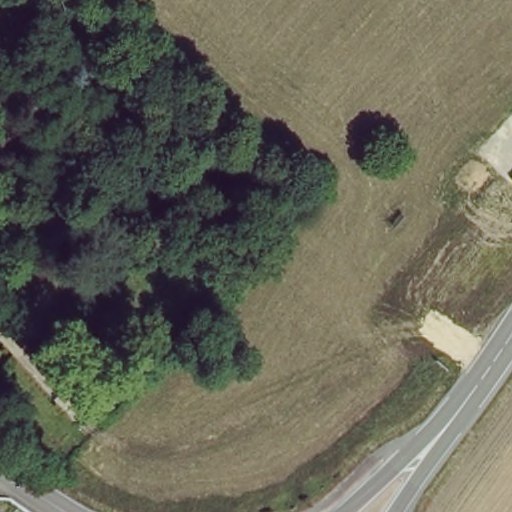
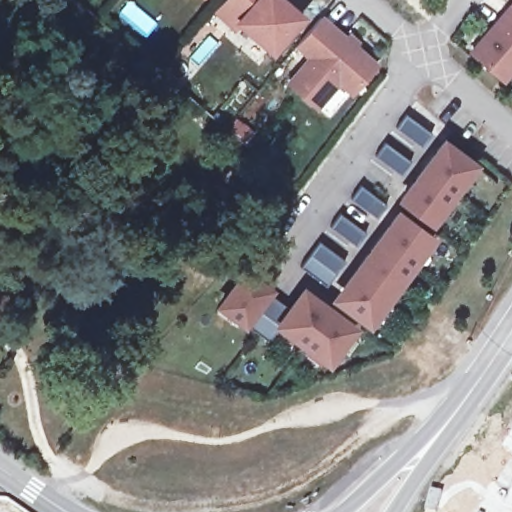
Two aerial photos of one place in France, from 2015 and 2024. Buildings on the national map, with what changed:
new [(273,50),(240,22),(236,27),(215,10),(223,0),(282,0),(302,17),(273,50)]
new [(512,6),(512,71),(504,80),(472,52),(512,6)]
new [(311,58),(297,45),(321,17),(376,65),(352,93),(339,82),(318,107),(289,82),(311,58)]
new [(407,115),(433,134),(423,147),(397,127),(407,115)]
new [(386,142),(412,162),(402,175),(376,156),(386,142)]
new [(445,142),(475,165),(458,188),(464,192),(459,198),(453,194),(437,216),(443,220),(439,226),(402,200),(445,142)]
new [(361,185),(387,205),(377,217),(351,198),(361,185)]
new [(340,213),(366,232),(356,245),(330,226),(340,213)]
new [(380,322),(376,327),(339,300),(360,272),(357,270),(399,213),(430,236),(423,245),(429,249),(418,263),(414,269),(408,265),(402,273),(408,277),(398,291),(394,296),(391,295),(384,303),(391,307),(380,322)]
new [(319,241),(345,260),(326,285),(300,266),(319,241)]
new [(270,290),(268,292),(291,309),(304,291),(354,328),(329,362),(309,347),(305,354),(299,350),(304,343),(280,326),(269,341),(236,317),(231,323),(216,312),(221,305),(246,272),(270,290)]

